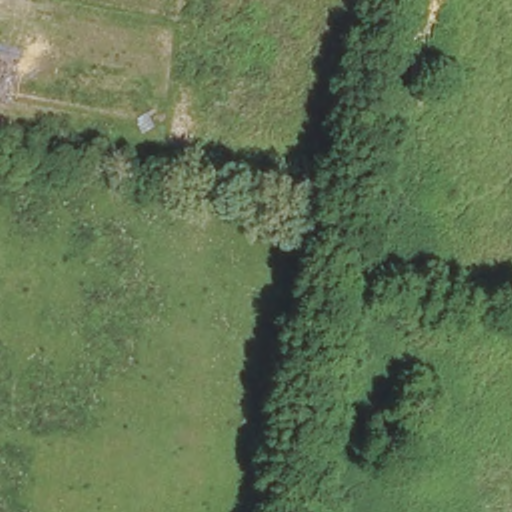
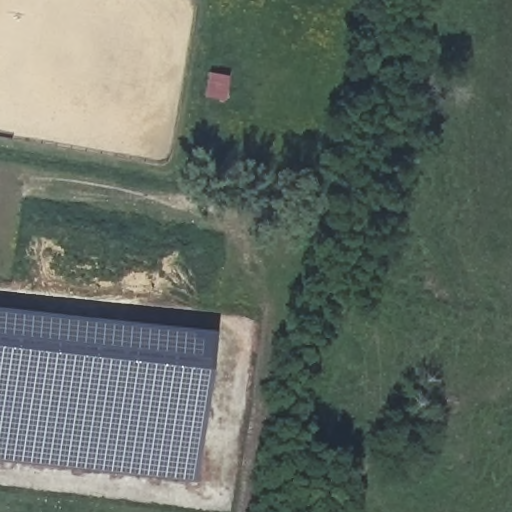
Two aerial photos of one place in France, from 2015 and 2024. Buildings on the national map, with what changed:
new [(214,339),(198,487),(0,466),(0,316),(214,339)]

